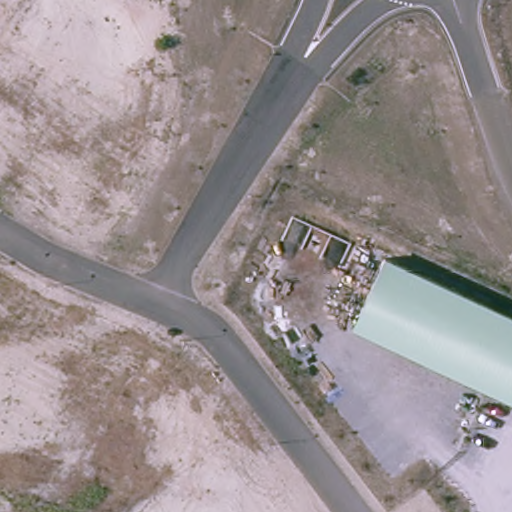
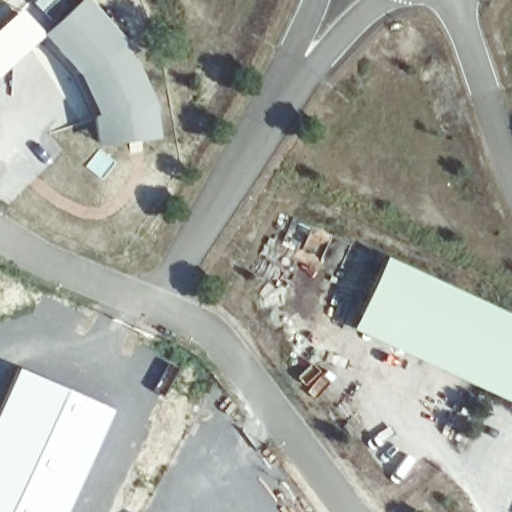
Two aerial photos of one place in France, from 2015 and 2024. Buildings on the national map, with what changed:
new [(31,2),(33,0),(62,0),(69,8),(78,0),(89,0),(119,34),(136,61),(153,101),(158,138),(98,146),(94,115),(76,77),(43,36),(40,32),(50,24),(31,2)]
new [(40,32),(43,36),(4,73),(0,76),(0,24),(21,7),(40,32)]
unchanged [(352,329),(384,258),(512,316),(512,403),(352,329)]
new [(113,410),(80,475),(64,512),(0,512),(0,401),(15,367),(113,410)]

